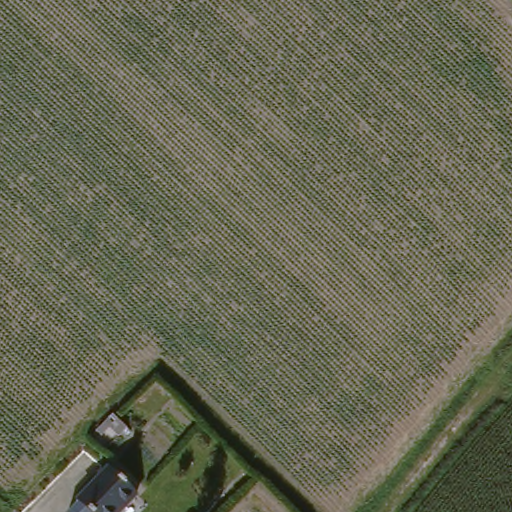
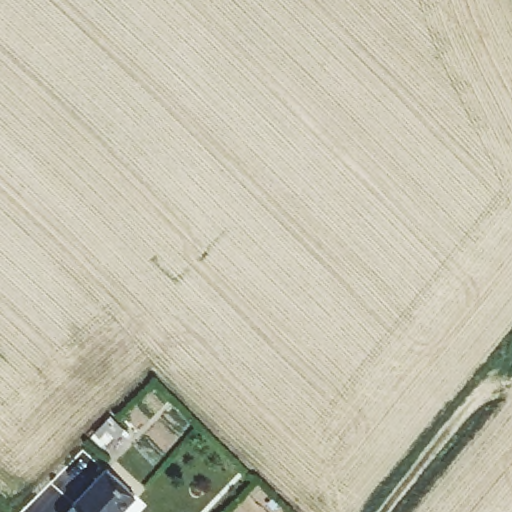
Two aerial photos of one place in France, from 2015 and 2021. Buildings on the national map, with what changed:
unchanged [(124,512),(73,512),(81,504),(80,502),(112,469),(140,495),(124,512)]

